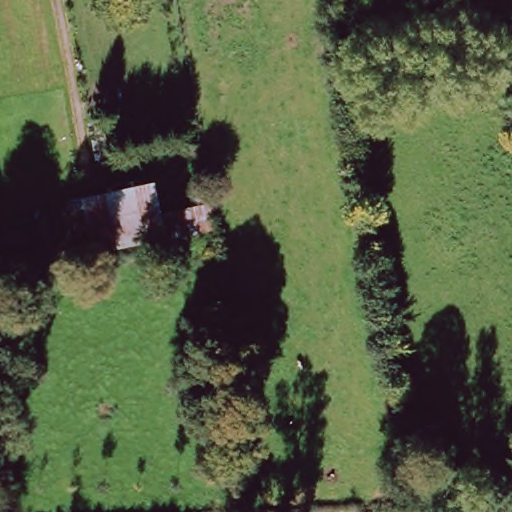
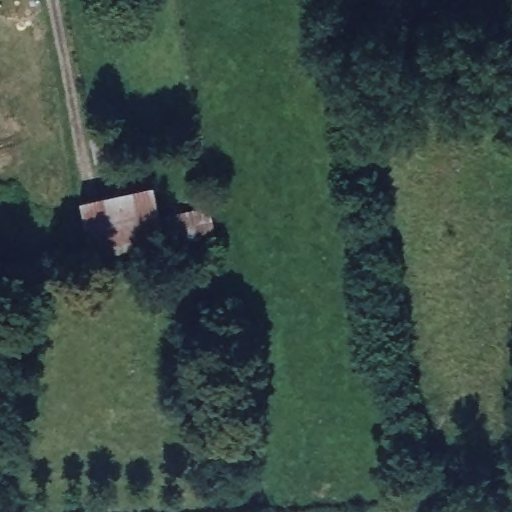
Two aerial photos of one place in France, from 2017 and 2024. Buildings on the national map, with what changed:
unchanged [(96,249),(80,197),(153,177),(162,213),(166,229),(96,249)]
unchanged [(208,205),(217,232),(170,246),(166,229),(162,213),(208,205)]

